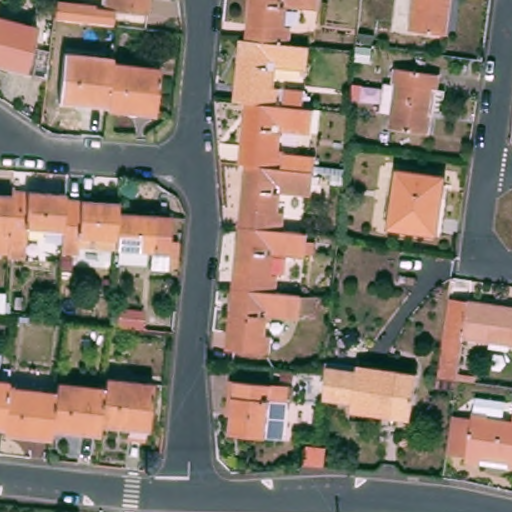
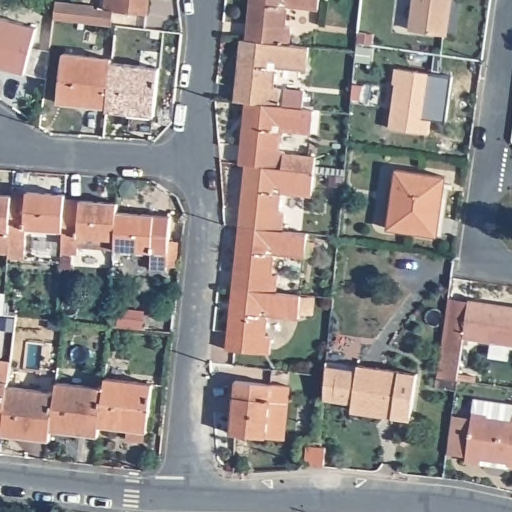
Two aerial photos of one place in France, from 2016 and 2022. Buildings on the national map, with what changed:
unchanged [(0,0),(1,0),(0,3),(0,0)]
unchanged [(58,0),(105,5),(106,0),(154,0),(152,14),(111,9),(114,9),(112,25),(55,18),(58,0)]
unchanged [(287,9),(287,5),(282,5),(282,10),(285,11),(284,29),(291,30),(289,48),(246,44),(251,0),(320,0),(319,11),(287,9)]
unchanged [(320,0),(331,0),(331,1),(320,0)]
unchanged [(412,28),(416,0),(451,0),(446,33),(412,28)]
unchanged [(31,73),(0,64),(0,15),(43,25),(31,73)]
unchanged [(305,94),(304,112),(247,105),(236,104),(242,43),(246,44),(289,48),(310,50),(307,73),(275,69),(272,90),(280,91),(285,92),(305,94)]
unchanged [(118,63),(113,106),(66,100),(71,53),(119,59),(118,63)]
unchanged [(113,106),(118,63),(165,69),(159,114),(113,109),(113,106)]
unchanged [(440,73),(438,87),(446,89),(443,112),(433,111),(430,131),(390,126),(392,111),(381,110),(386,80),(394,81),(396,67),(440,73)]
unchanged [(304,112),(314,113),(321,114),(319,137),(312,136),(280,133),(280,129),(275,129),(275,134),(279,135),(278,153),(283,154),(282,157),(316,161),(314,175),(248,169),(241,168),(247,105),(304,112)]
unchanged [(402,168),(452,174),(449,199),(445,198),(440,235),(394,229),(402,168)]
unchanged [(312,198),(280,194),(280,192),(275,190),(275,198),(279,198),(277,216),(285,217),(283,234),(242,230),(248,169),(314,175),(312,198)]
unchanged [(13,190),(66,194),(66,199),(64,230),(28,228),(26,259),(8,258),(9,254),(13,195),(13,190)]
unchanged [(9,254),(0,253),(0,195),(13,195),(9,254)]
unchanged [(118,212),(117,239),(116,249),(80,247),(79,254),(62,253),(64,230),(66,199),(119,203),(118,212)]
unchanged [(170,216),(167,270),(151,269),(152,252),(116,249),(117,239),(118,212),(170,216)]
unchanged [(283,234),(308,237),(305,259),(274,257),(274,253),(269,252),(269,259),(273,259),(271,278),(279,279),(277,295),(236,292),(242,230),(283,234)]
unchanged [(348,242),(348,251),(338,249),(338,240),(348,242)]
unchanged [(277,295),(301,299),(299,320),(267,317),(267,314),(262,314),(262,320),(266,320),(264,339),(272,340),(270,358),(230,353),(236,292),(277,295)]
unchanged [(452,312),(454,297),(475,300),(512,305),(512,342),(470,336),(467,350),(447,347),(447,345),(452,312)]
unchanged [(358,403),(329,399),(331,374),(332,361),(364,364),(423,373),(416,418),(398,415),(357,409),(358,403)]
unchanged [(134,439),(135,428),(106,424),(111,387),(112,378),(158,383),(153,429),(149,429),(147,441),(134,439)]
unchanged [(13,386),(8,428),(0,427),(0,379),(14,381),(13,386)]
unchanged [(291,385),(286,438),(230,432),(235,379),(291,385)]
unchanged [(57,428),(62,391),(63,381),(111,387),(106,424),(105,434),(57,428)]
unchanged [(56,439),(8,433),(8,428),(13,386),(62,391),(57,428),(56,439)]
unchanged [(482,463),(467,461),(467,456),(448,454),(453,414),(473,417),(474,412),(489,414),(488,416),(512,419),(512,464),(509,464),(483,461),(482,463)]
unchanged [(326,447),(324,464),(317,464),(306,463),(308,445),(319,446),(326,447)]

